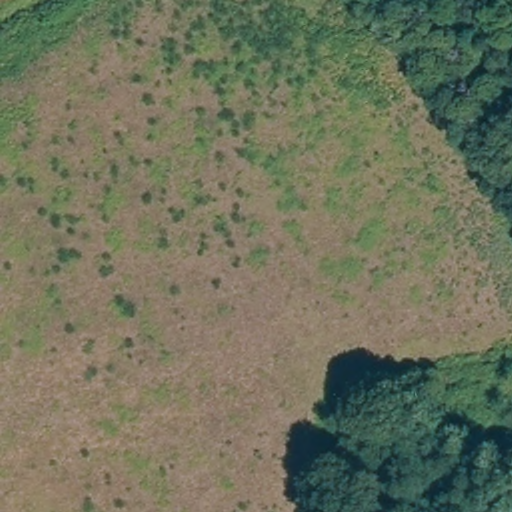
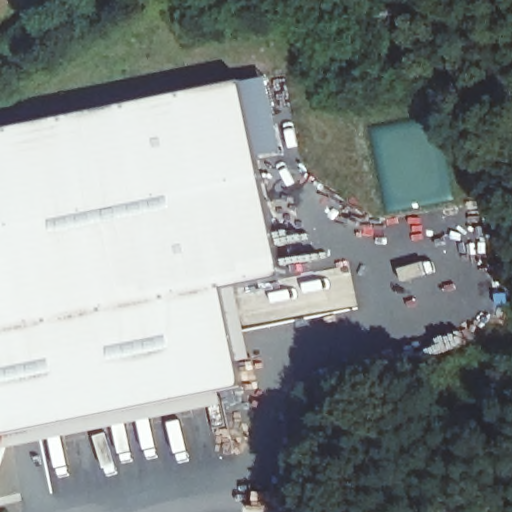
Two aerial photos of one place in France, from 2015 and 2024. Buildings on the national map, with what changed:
new [(225,405),(5,448),(0,462),(0,133),(244,83),(284,279),(240,287),(253,359),(240,361),(245,387),(223,391),(225,405)]

